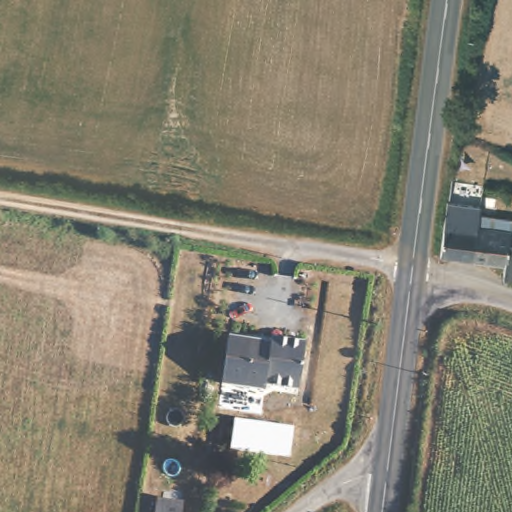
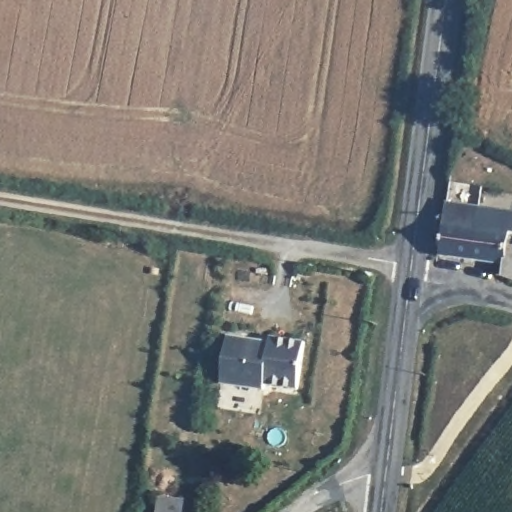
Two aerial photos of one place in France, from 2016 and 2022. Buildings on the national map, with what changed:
unchanged [(472,144),(470,156),(458,152),(459,139),(472,144)]
unchanged [(445,202),(446,202),(479,207),(479,213),(478,227),(475,257),(439,251),(443,222),(445,202)]
unchanged [(508,262),(475,257),(478,227),(479,213),(512,217),(512,271),(507,271),(508,262)]
unchanged [(266,338),(267,335),(300,338),(295,385),(259,381),(258,386),(218,381),(224,333),(266,338)]
unchanged [(183,512),(158,512),(159,503),(184,507),(183,512)]

